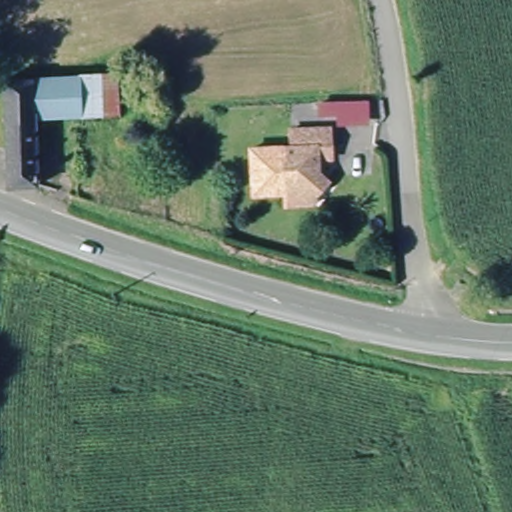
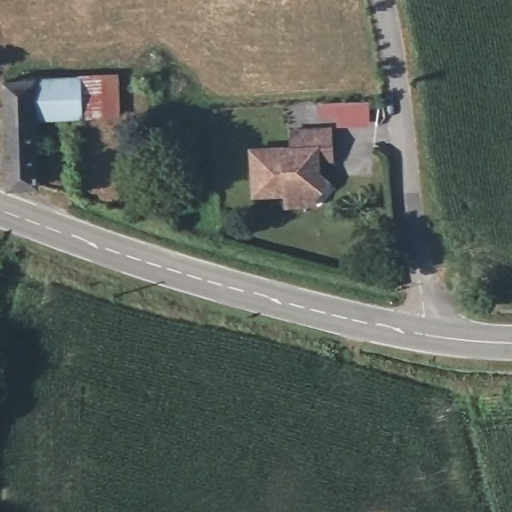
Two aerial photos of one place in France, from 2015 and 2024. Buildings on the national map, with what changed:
unchanged [(119,73),(123,118),(84,120),(80,76),(119,73)]
unchanged [(7,80),(80,76),(84,120),(51,120),(10,122),(7,80)]
unchanged [(365,114),(334,114),(335,102),(365,101),(365,114)]
unchanged [(10,122),(51,120),(52,128),(41,129),(44,188),(14,188),(10,122)]
unchanged [(290,207),(289,194),(250,195),(250,148),(259,147),(293,147),(293,128),(335,126),(336,147),(323,148),(324,169),(333,172),(322,193),(322,205),(290,207)]

